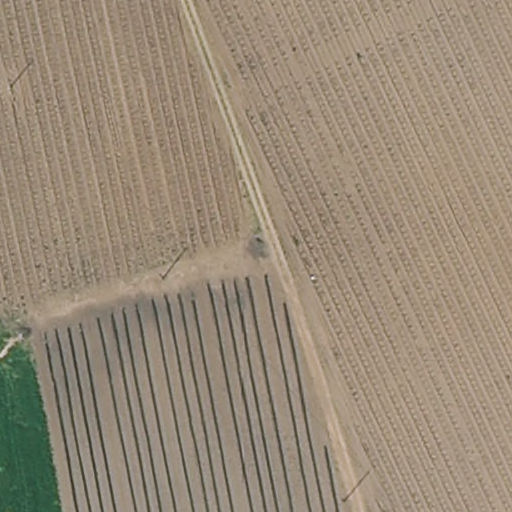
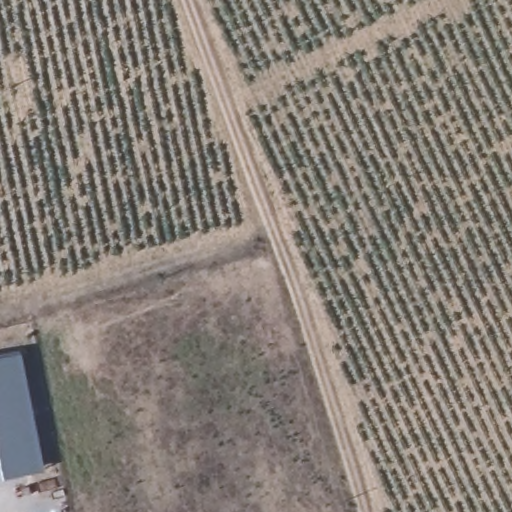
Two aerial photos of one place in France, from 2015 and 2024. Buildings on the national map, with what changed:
new [(21,352),(42,468),(0,478),(0,356),(21,352)]

